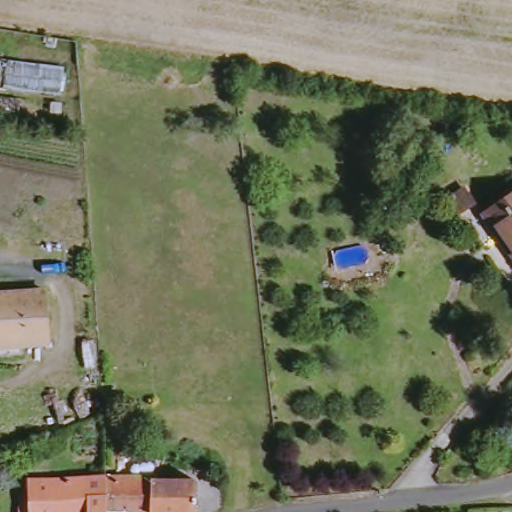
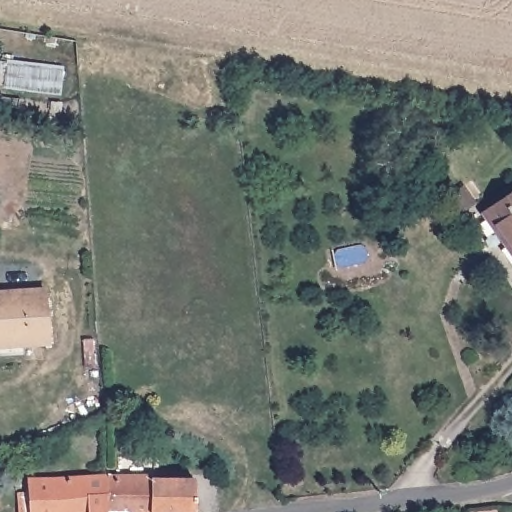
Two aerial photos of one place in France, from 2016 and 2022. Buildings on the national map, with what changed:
unchanged [(452,207),(438,216),(427,201),(441,191),(452,207)]
unchanged [(512,197),(512,239),(492,210),(512,197)]
unchanged [(0,300),(0,290),(49,283),(56,335),(29,339),(31,349),(0,353),(0,300)]
unchanged [(113,477),(115,512),(34,512),(32,482),(113,477)]
unchanged [(203,480),(205,512),(115,512),(113,477),(203,480)]

